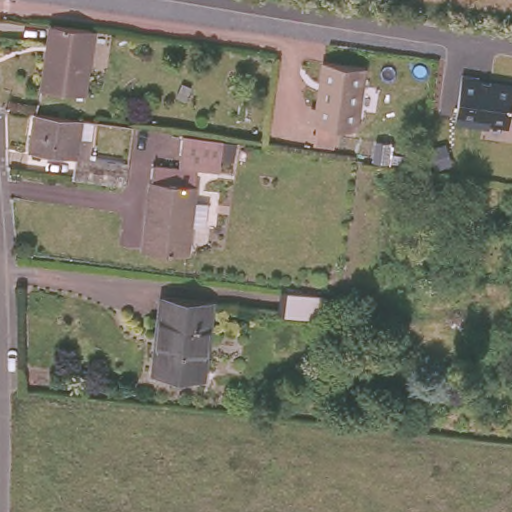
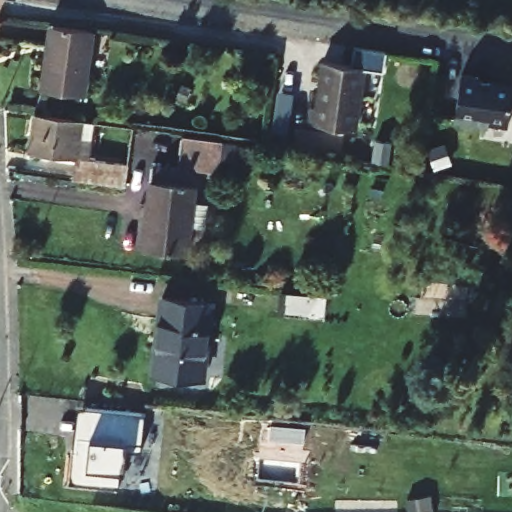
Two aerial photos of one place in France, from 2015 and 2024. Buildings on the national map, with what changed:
unchanged [(84,95),(42,89),(47,50),(50,23),(53,23),(93,29),(84,95)]
unchanged [(365,66),(356,128),(310,122),(312,105),(317,106),(323,60),(365,66)]
unchanged [(458,77),(510,85),(505,128),(453,120),(458,77)]
unchanged [(87,120),(95,121),(90,159),(127,164),(123,186),(70,178),(73,157),(28,150),(33,112),(87,120)]
unchanged [(205,227),(190,225),(185,254),(142,248),(154,163),(178,166),(183,134),(237,143),(235,160),(220,158),(220,160),(222,160),(220,172),(201,170),(197,170),(193,201),(208,203),(205,227)]
unchanged [(427,153),(425,162),(412,160),(413,151),(427,153)]
unchanged [(327,297),(325,305),(322,305),(320,318),(282,313),(284,292),(323,297),(327,297)]
unchanged [(210,301),(210,304),(202,378),(155,373),(163,297),(210,301)]
new [(146,413),(142,452),(128,450),(125,471),(122,471),(120,485),(71,479),(79,407),(146,413)]

